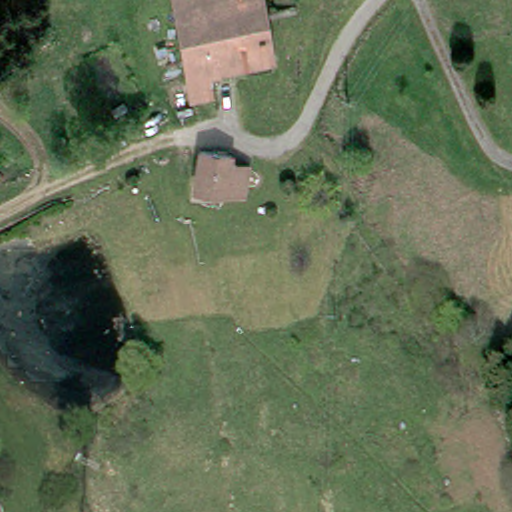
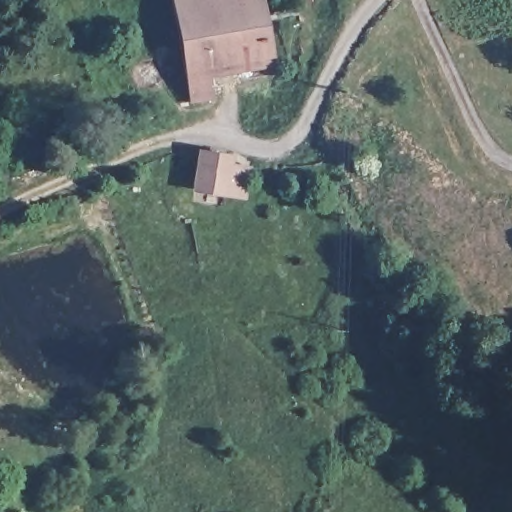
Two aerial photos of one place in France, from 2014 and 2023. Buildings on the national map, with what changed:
unchanged [(277,66),(209,79),(211,91),(190,95),(175,0),(267,0),(277,66)]
unchanged [(245,170),(245,180),(241,196),(195,187),(196,166),(196,154),(221,153),(220,166),(245,170)]

